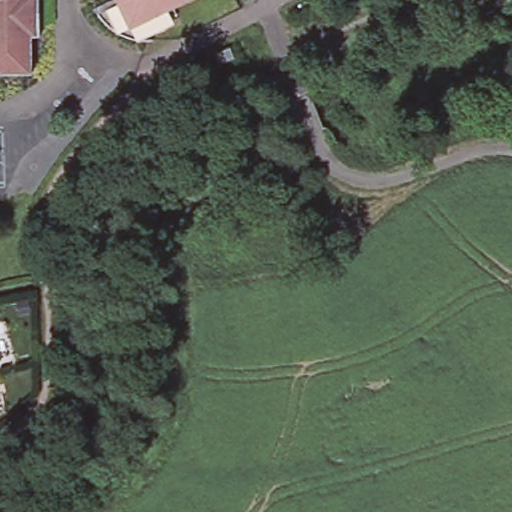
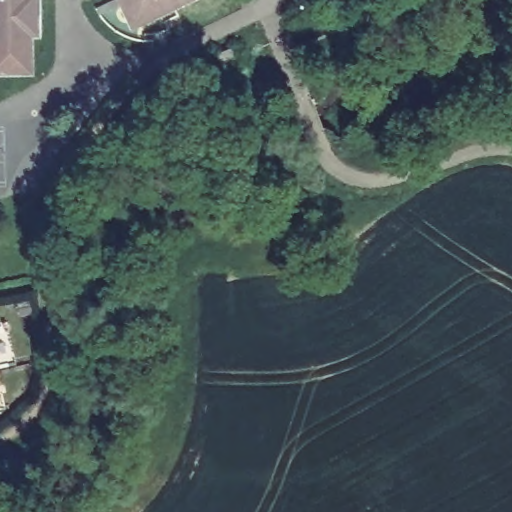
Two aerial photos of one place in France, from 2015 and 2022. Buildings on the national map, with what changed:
unchanged [(34,35),(35,70),(38,70),(38,72),(0,73),(0,0),(45,0),(45,36),(43,36),(43,35),(34,35)]
unchanged [(149,21),(147,17),(135,13),(131,15),(125,4),(104,15),(100,8),(117,0),(193,0),(149,21)]
unchanged [(234,57),(221,62),(218,52),(231,47),(234,57)]
unchanged [(28,300),(30,311),(19,314),(17,302),(28,300)]
unchanged [(0,366),(0,359),(1,365),(0,366)]

